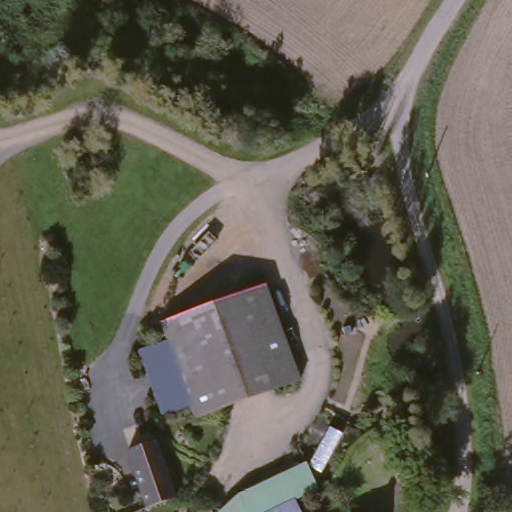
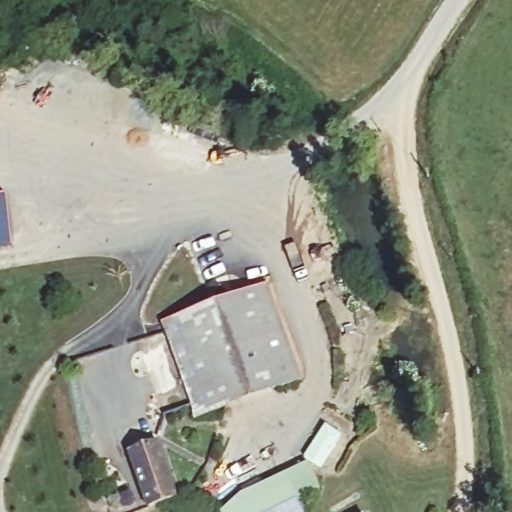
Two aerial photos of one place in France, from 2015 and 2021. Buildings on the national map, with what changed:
new [(6,195),(11,245),(0,247),(0,196),(6,195)]
unchanged [(298,383),(196,423),(189,407),(162,343),(155,328),(258,287),(298,383)]
unchanged [(162,343),(189,407),(157,417),(134,354),(162,343)]
unchanged [(186,495),(164,503),(141,452),(160,443),(164,451),(186,495)]
unchanged [(164,503),(160,505),(144,512),(139,512),(118,464),(117,462),(141,452),(164,503)]
unchanged [(319,492),(296,503),(299,512),(220,512),(238,496),(307,466),(319,492)]

